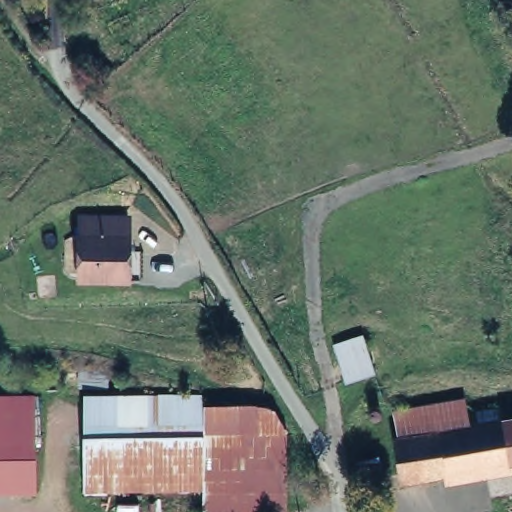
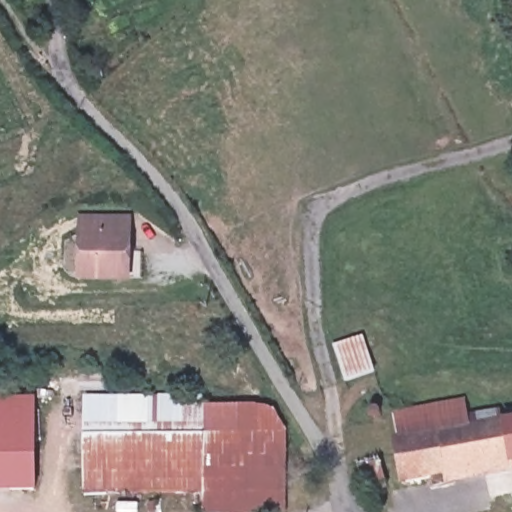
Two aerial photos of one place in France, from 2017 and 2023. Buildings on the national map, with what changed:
unchanged [(77,215),(129,215),(130,284),(77,282),(77,215)]
unchanged [(332,342),(364,336),(373,375),(347,382),(332,342)]
unchanged [(465,392),(469,411),(512,404),(512,475),(442,487),(440,477),(397,480),(390,405),(465,392)]
unchanged [(30,490),(0,491),(0,395),(32,395),(30,490)]
unchanged [(96,427),(97,405),(199,406),(199,396),(247,395),(276,400),(290,426),(286,512),(200,512),(200,489),(85,489),(81,428),(96,427)]
unchanged [(362,496),(354,459),(378,454),(389,490),(362,496)]

